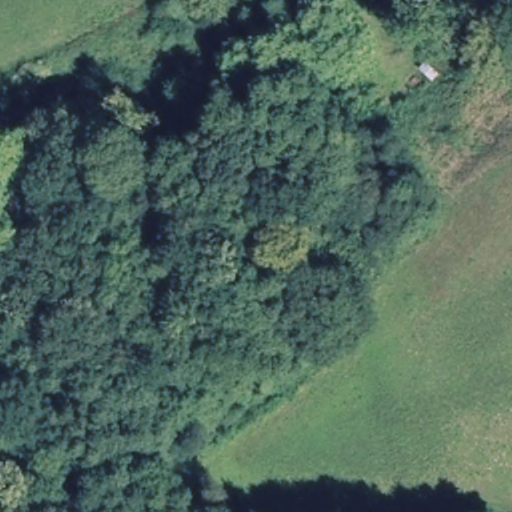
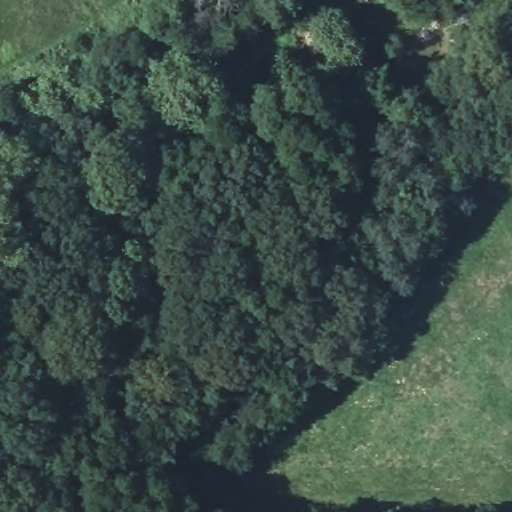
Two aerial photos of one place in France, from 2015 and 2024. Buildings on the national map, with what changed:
unchanged [(340,35),(325,51),(305,35),(324,14),(340,35)]

